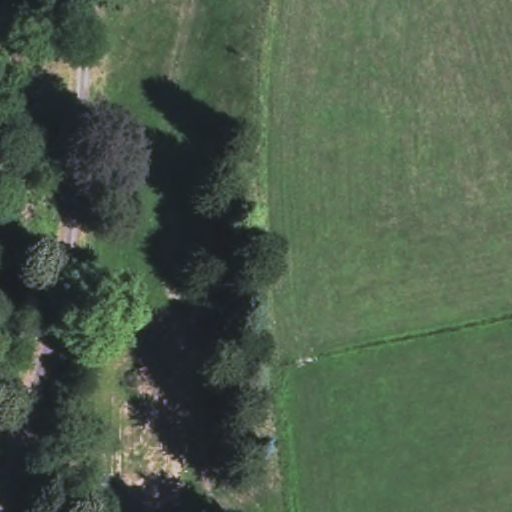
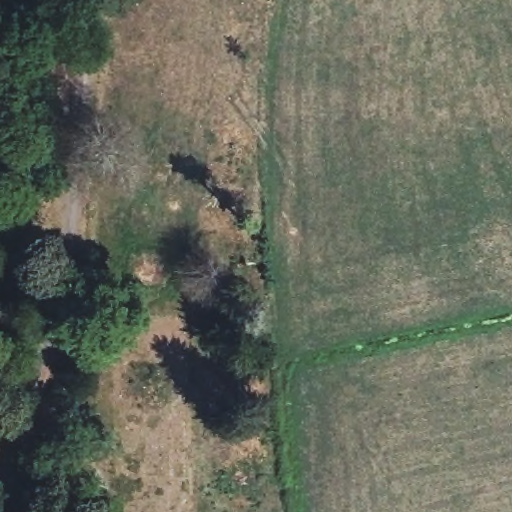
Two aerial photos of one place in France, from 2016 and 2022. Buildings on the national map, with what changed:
[]

